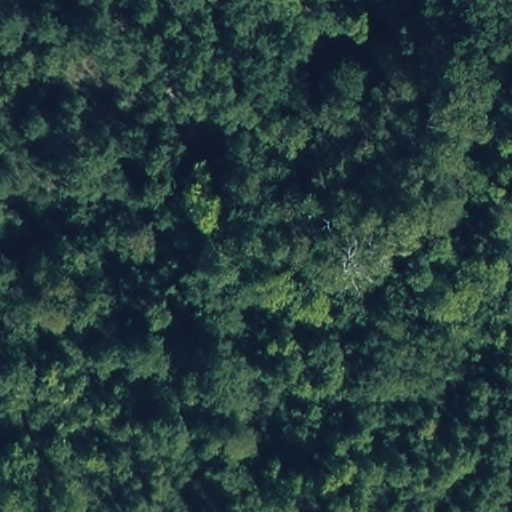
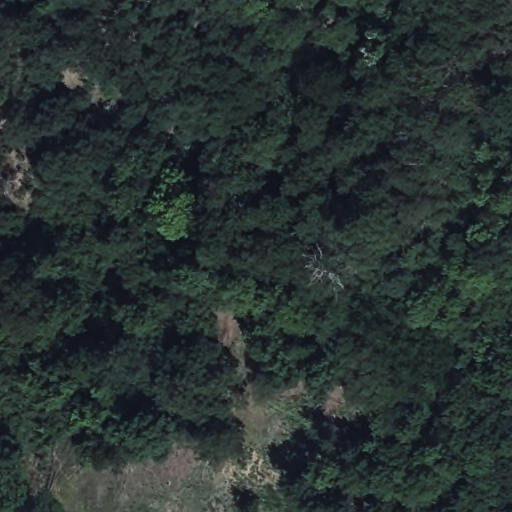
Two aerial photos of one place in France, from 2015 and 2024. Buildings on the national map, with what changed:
[]

